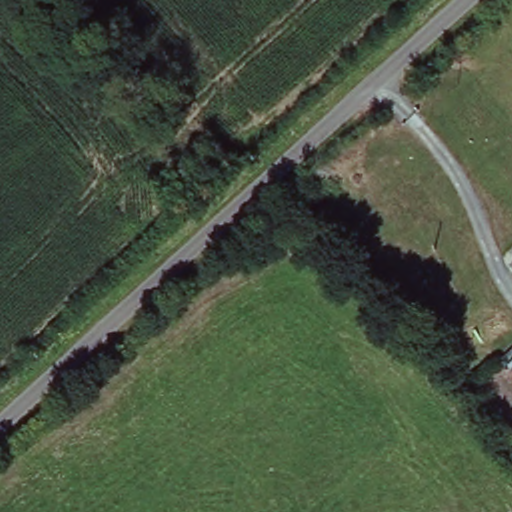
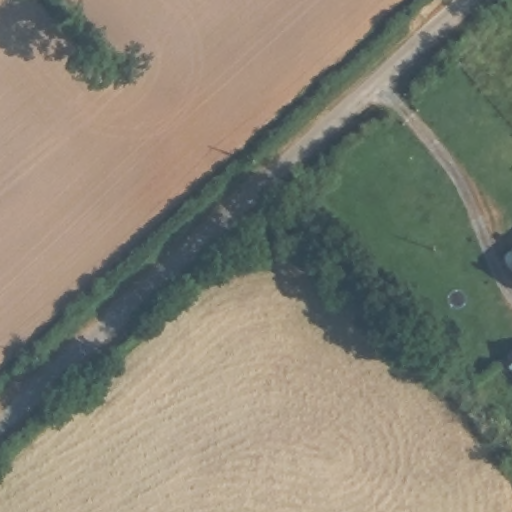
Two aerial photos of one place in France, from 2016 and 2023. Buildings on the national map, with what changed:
unchanged [(512,279),(502,269),(512,260),(512,279)]
unchanged [(512,361),(512,378),(503,368),(512,361)]

